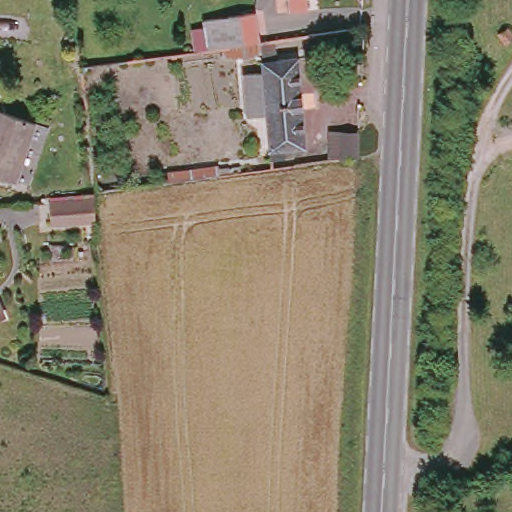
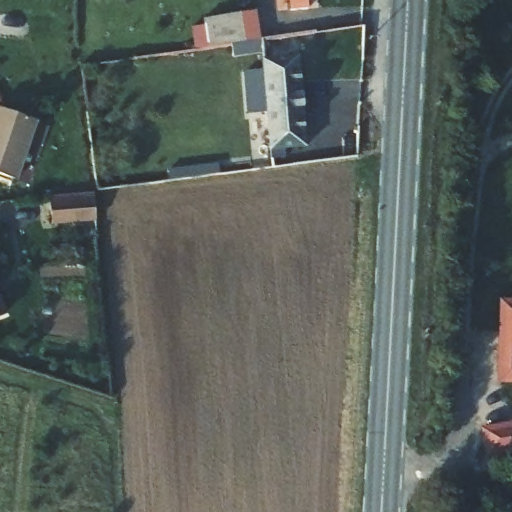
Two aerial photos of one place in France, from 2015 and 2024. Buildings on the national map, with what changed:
unchanged [(285,16),(284,0),(301,0),(303,15),(285,16)]
unchanged [(243,11),(246,39),(196,46),(193,16),(243,11)]
unchanged [(252,97),(251,79),(268,76),(266,44),(257,44),(256,37),(274,35),(276,52),(300,50),(309,141),(286,144),(286,153),(274,156),(271,125),(256,127),(252,97)]
unchanged [(37,126),(23,174),(0,169),(0,115),(37,126)]
unchanged [(355,132),(354,158),(351,158),(336,160),(338,131),(355,132)]
unchanged [(98,200),(98,205),(94,224),(51,215),(52,210),(54,191),(98,200)]
new [(512,299),(512,380),(496,379),(499,299),(512,299)]

